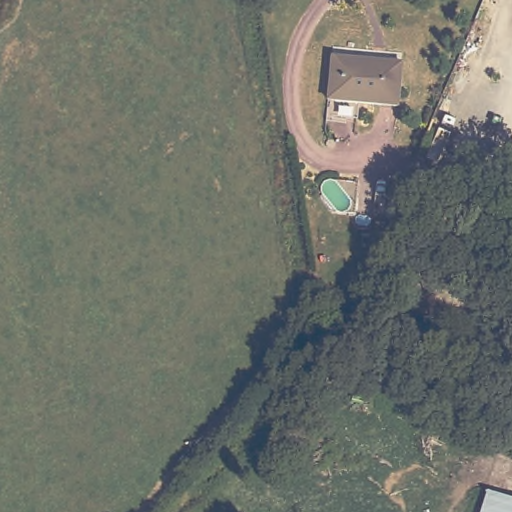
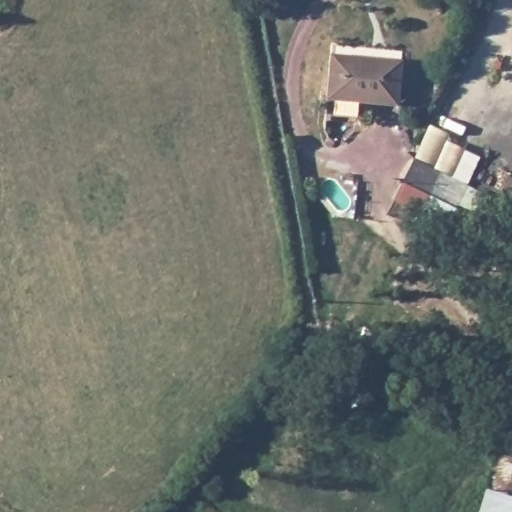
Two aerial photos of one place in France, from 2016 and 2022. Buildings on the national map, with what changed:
unchanged [(331,100),(336,56),(404,62),(400,107),(331,100)]
unchanged [(510,177),(512,178),(512,211),(510,210),(497,204),(510,177)]
unchanged [(482,490),(512,500),(512,512),(475,512),(482,490)]

